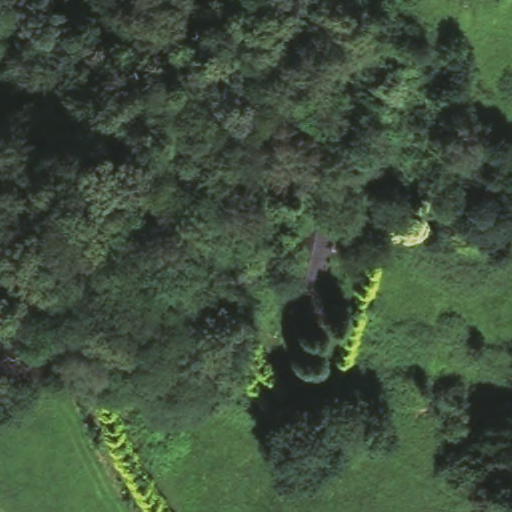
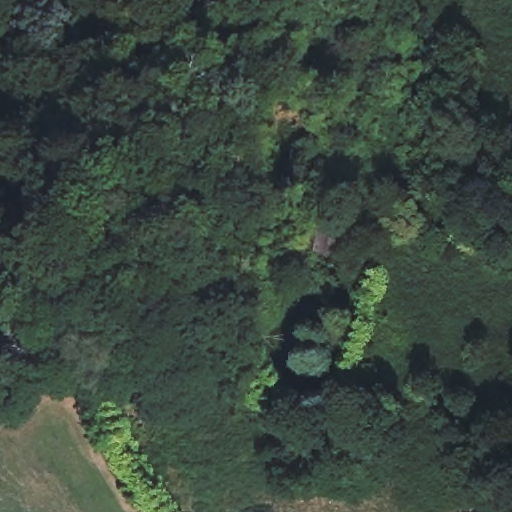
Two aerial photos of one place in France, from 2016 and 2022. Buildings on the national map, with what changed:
unchanged [(333,214),(313,300),(277,290),(294,206),(333,214)]

